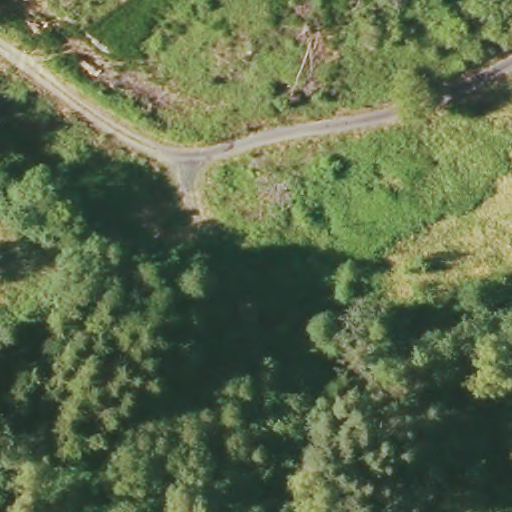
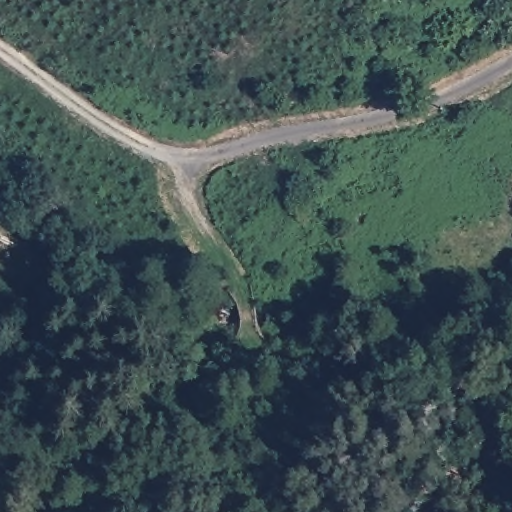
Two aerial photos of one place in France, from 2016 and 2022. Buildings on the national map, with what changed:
unchanged [(263,362),(256,360),(263,350),(268,353),(263,362)]

